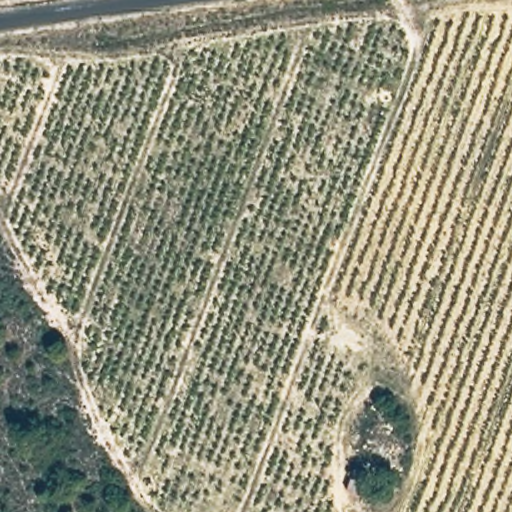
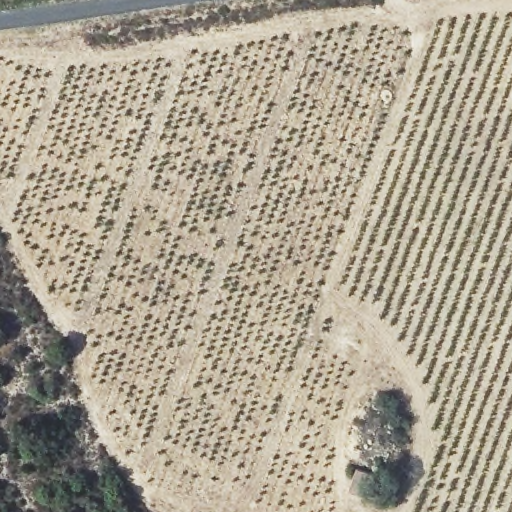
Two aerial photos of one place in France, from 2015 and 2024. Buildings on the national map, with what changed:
unchanged [(380,473),(373,497),(354,492),(361,469),(380,473)]

